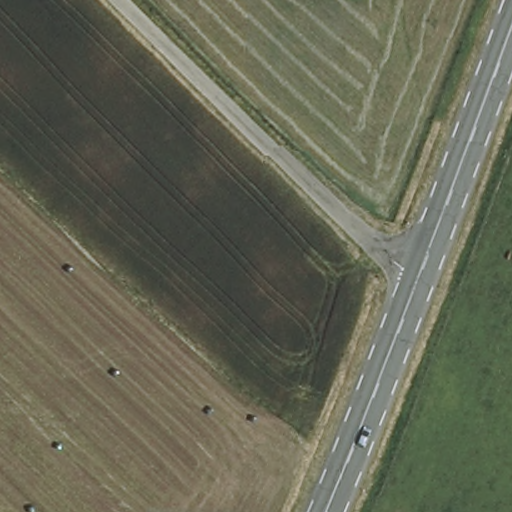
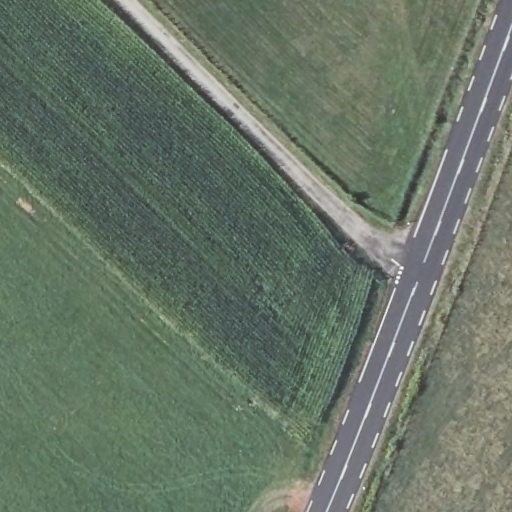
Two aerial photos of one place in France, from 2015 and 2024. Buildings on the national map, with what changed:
[]

